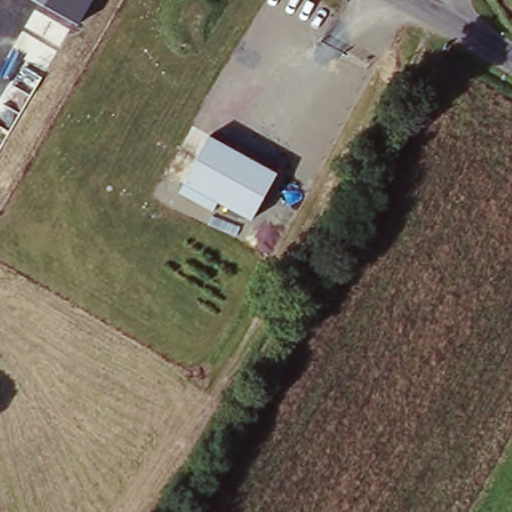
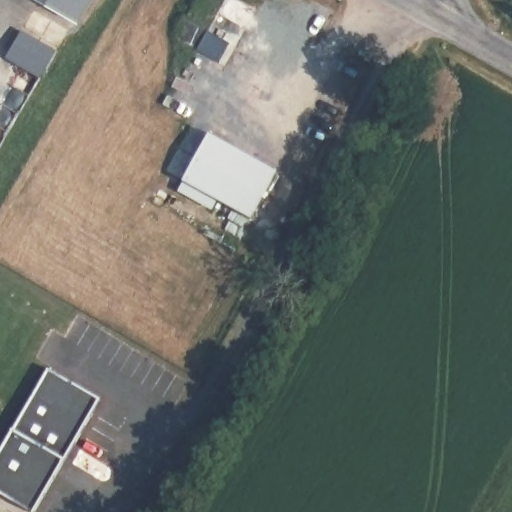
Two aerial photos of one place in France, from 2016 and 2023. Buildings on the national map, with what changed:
unchanged [(79,25),(37,0),(93,0),(79,25)]
new [(23,30),(58,50),(42,76),(7,56),(23,30)]
unchanged [(252,219),(218,200),(214,210),(179,192),(187,178),(211,133),(278,172),(252,219)]
new [(31,510),(0,493),(0,448),(46,367),(100,397),(31,510)]

